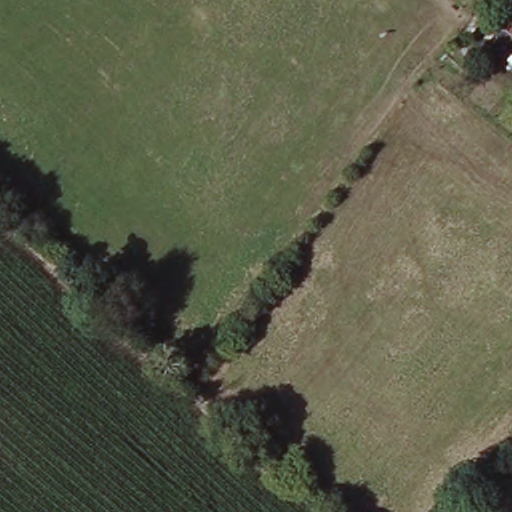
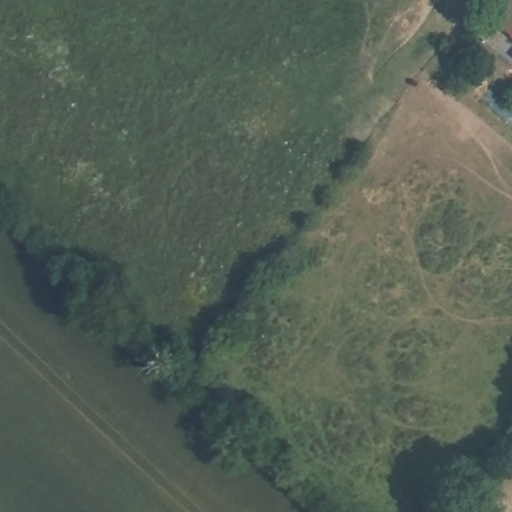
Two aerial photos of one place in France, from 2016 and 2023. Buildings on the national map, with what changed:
unchanged [(496,24),(511,4),(512,5),(512,37),(496,24)]
unchanged [(512,4),(512,5),(511,4),(512,4)]

